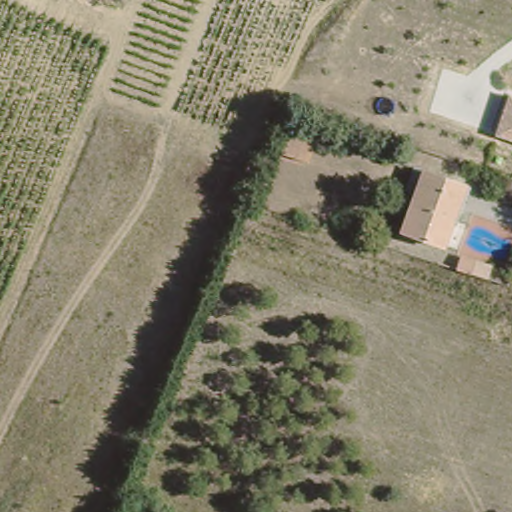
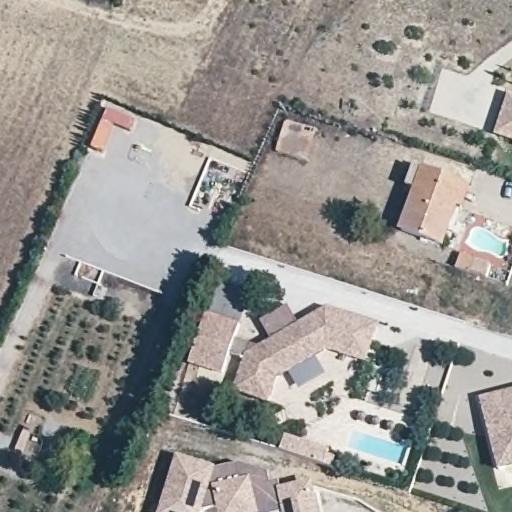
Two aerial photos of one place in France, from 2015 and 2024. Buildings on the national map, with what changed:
unchanged [(512,91),(512,139),(494,133),(507,89),(512,91)]
unchanged [(459,183),(447,219),(438,241),(399,228),(407,204),(419,168),(459,183)]
unchanged [(508,267),(502,283),(465,272),(470,256),(508,267)]
new [(182,363),(212,278),(251,292),(235,339),(259,346),(325,308),(378,324),(366,364),(325,352),(316,358),(327,375),(298,389),(288,373),(276,381),(269,405),(232,392),(245,357),(231,352),(222,376),(182,363)]
new [(480,399),(512,391),(512,467),(498,471),(480,399)]
new [(282,446),(287,432),(339,449),(334,464),(282,446)]
new [(217,512),(216,506),(200,510),(200,512),(159,512),(176,455),(217,468),(240,462),(267,472),(269,483),(277,481),(280,489),(312,481),(317,512),(217,512)]

